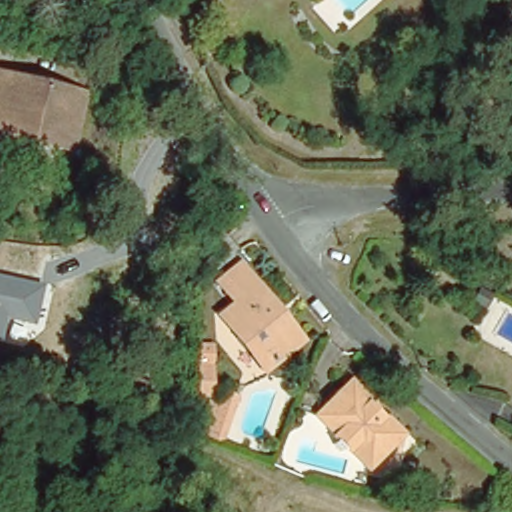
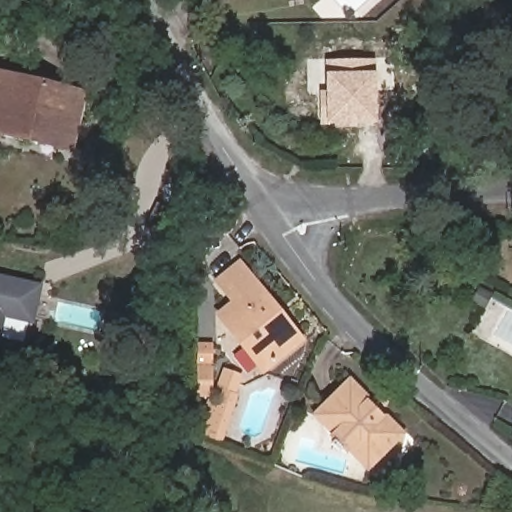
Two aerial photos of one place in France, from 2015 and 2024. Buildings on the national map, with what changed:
new [(375,61),(375,74),(377,125),(328,125),(321,125),(319,92),(326,92),(326,74),(326,60),(375,61)]
unchanged [(51,148),(52,142),(1,129),(0,131),(0,75),(1,75),(16,79),(16,75),(44,82),(46,77),(57,79),(55,89),(81,94),(84,95),(81,107),(70,152),(51,148)]
unchanged [(284,319),(303,342),(266,373),(221,319),(233,307),(215,287),(239,266),(256,286),(275,308),(284,319)]
unchanged [(34,326),(6,318),(0,343),(0,274),(44,285),(34,326)]
unchanged [(483,287),(494,293),(487,305),(477,297),(483,287)]
unchanged [(212,365),(210,398),(197,397),(197,343),(213,343),(212,365)]
unchanged [(368,472),(345,452),(340,453),(331,445),(331,440),(309,421),(345,381),(360,395),(386,417),(404,433),(368,472)]
unchanged [(205,438),(208,427),(204,426),(210,400),(222,402),(225,392),(238,395),(223,443),(205,438)]
unchanged [(192,411),(192,418),(165,417),(165,409),(192,411)]

